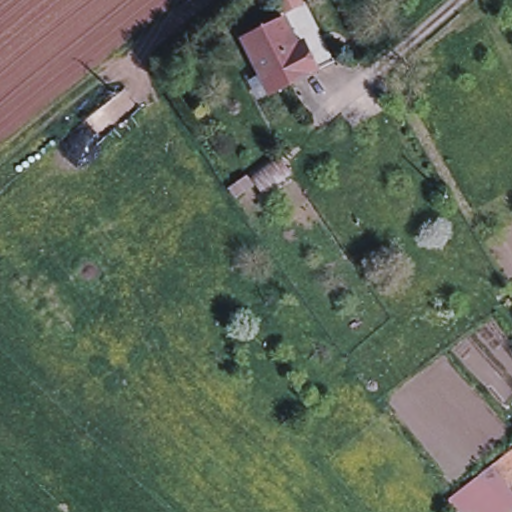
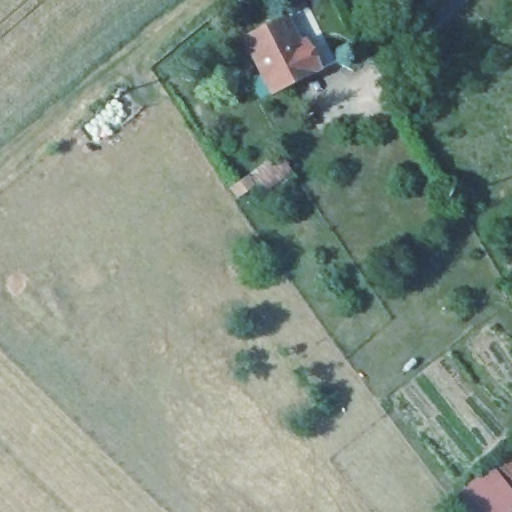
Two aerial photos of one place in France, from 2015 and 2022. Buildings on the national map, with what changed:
unchanged [(252,80),(234,43),(274,23),(271,19),(275,16),(267,0),(286,0),(290,9),(295,6),(325,67),(261,99),(251,104),(241,85),(252,80)]
unchanged [(292,174),(262,195),(257,188),(247,174),(277,153),(285,165),(292,174)]
unchanged [(497,466),(512,453),(512,486),(497,466)]
unchanged [(512,489),(512,512),(481,512),(512,489)]

